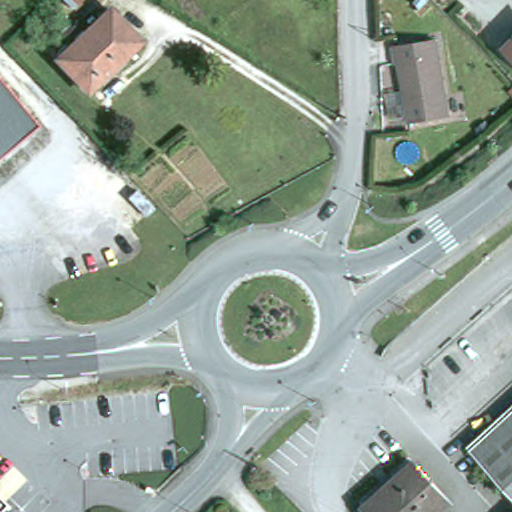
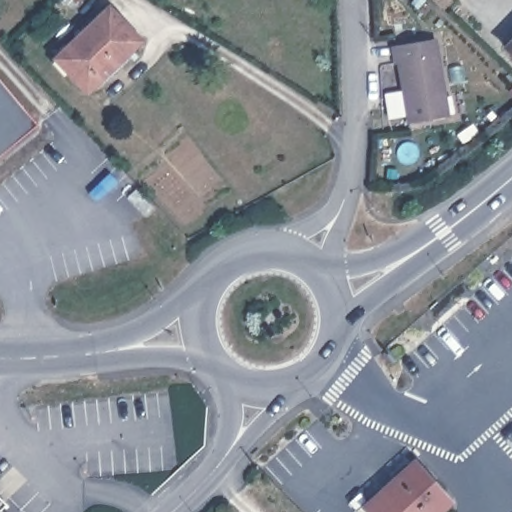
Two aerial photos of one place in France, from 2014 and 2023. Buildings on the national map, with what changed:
unchanged [(110,8),(140,41),(87,90),(56,57),(110,8)]
unchanged [(436,38),(448,116),(410,122),(400,62),(396,63),(393,45),(436,38)]
unchanged [(512,46),(512,69),(500,57),(512,46)]
unchanged [(36,125),(0,155),(0,81),(36,125)]
unchanged [(146,215),(144,212),(128,196),(136,188),(154,207),(146,215)]
demolished [(512,407),(512,495),(468,447),(512,407)]
unchanged [(440,512),(370,512),(365,507),(416,462),(451,502),(440,512)]
unchanged [(9,511),(9,512),(0,512),(0,501),(9,511)]

